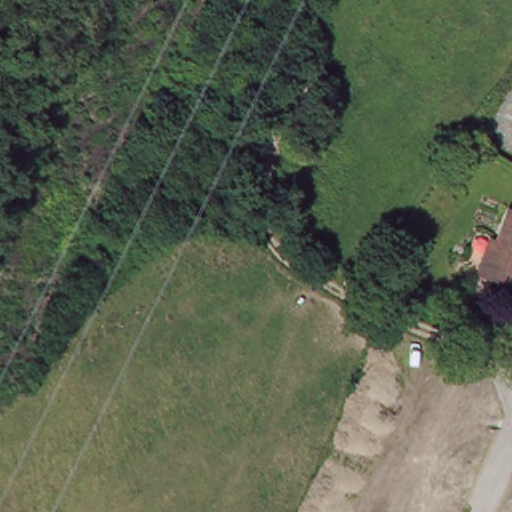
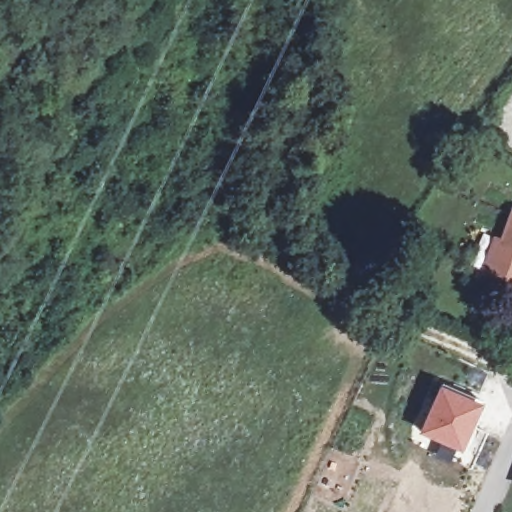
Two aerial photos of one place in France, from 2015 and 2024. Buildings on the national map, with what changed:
unchanged [(512,211),(512,285),(483,274),(497,239),(502,241),(512,211)]
new [(477,459),(463,452),(422,434),(442,387),(483,405),(473,429),(487,436),(477,459)]

